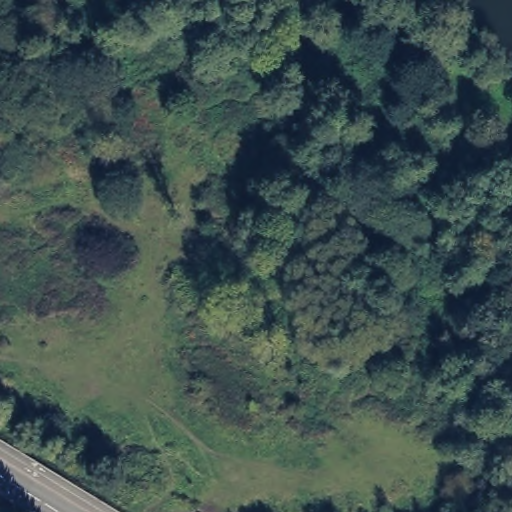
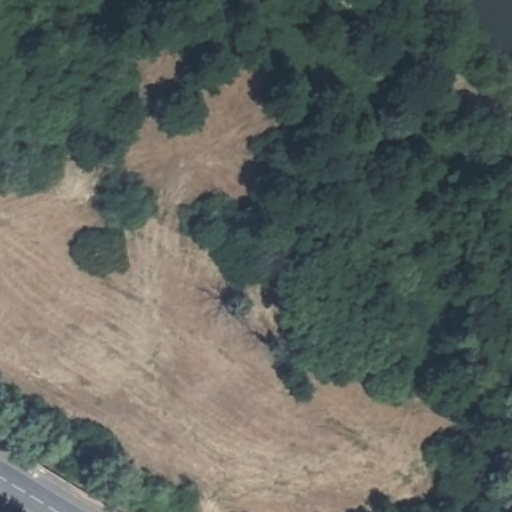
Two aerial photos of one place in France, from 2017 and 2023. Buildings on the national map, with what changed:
[]

